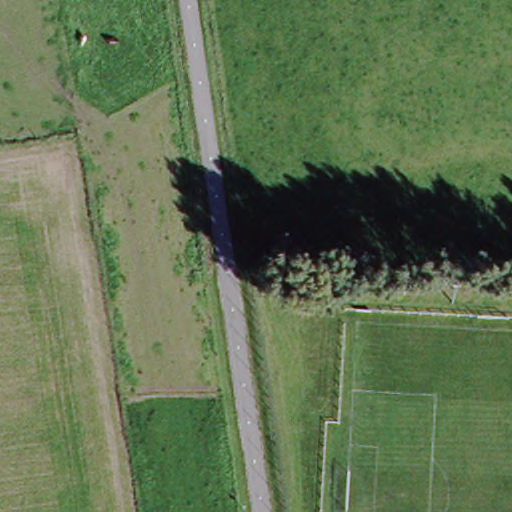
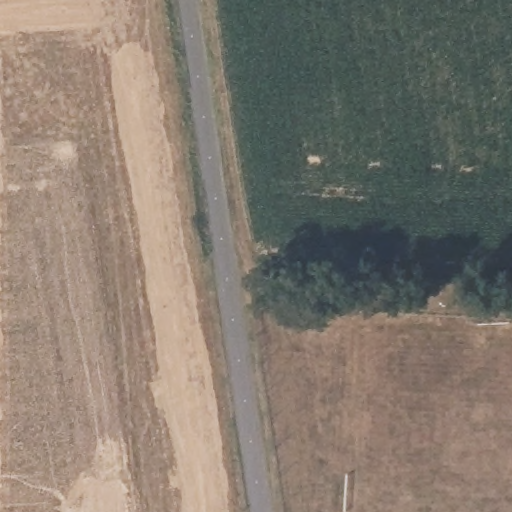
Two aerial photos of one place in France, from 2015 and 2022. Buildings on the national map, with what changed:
[]

